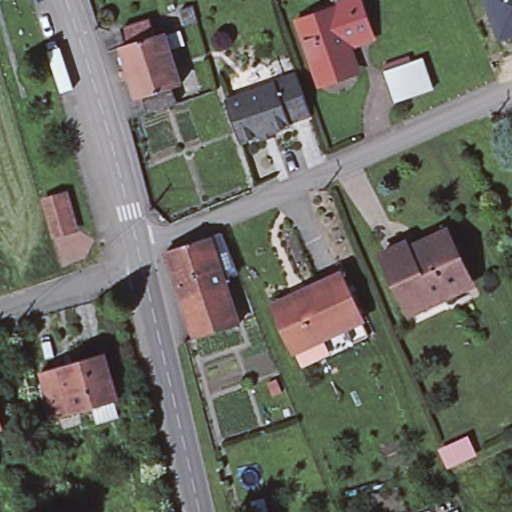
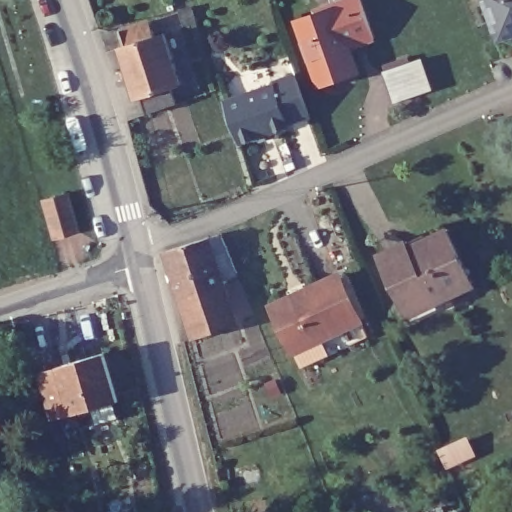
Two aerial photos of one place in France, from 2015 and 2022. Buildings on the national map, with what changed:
unchanged [(363,0),(374,30),(357,36),(354,29),(345,31),(355,59),(315,73),(296,15),(334,1),(333,0),(363,0)]
unchanged [(482,0),(512,0),(512,38),(499,43),(497,38),(482,0)]
unchanged [(198,19),(184,23),(180,8),(192,4),(198,19)]
unchanged [(150,116),(145,99),(140,101),(134,79),(129,81),(127,73),(132,71),(125,49),(130,48),(126,33),(154,24),(155,24),(160,39),(169,35),(185,88),(175,90),(180,106),(150,116)]
unchanged [(429,88),(397,100),(385,68),(417,57),(429,88)]
unchanged [(273,80),(297,72),(312,114),(289,121),(290,124),(241,142),(227,100),(275,83),(273,80)]
unchanged [(75,226),(50,233),(40,199),(65,193),(75,226)]
unchanged [(405,304),(381,250),(392,245),(406,239),(409,244),(448,227),(470,275),(467,277),(469,283),(449,292),(448,289),(407,308),(405,304)]
unchanged [(224,230),(237,269),(223,274),(239,323),(195,336),(167,248),(211,234),(224,230)]
unchanged [(338,270),(360,315),(296,348),(274,302),(338,270)]
unchanged [(360,315),(368,330),(303,363),(296,348),(360,315)]
unchanged [(104,352),(117,399),(74,411),(55,416),(42,370),(60,364),(104,352)]
unchanged [(5,427),(0,428),(0,408),(5,427)]

